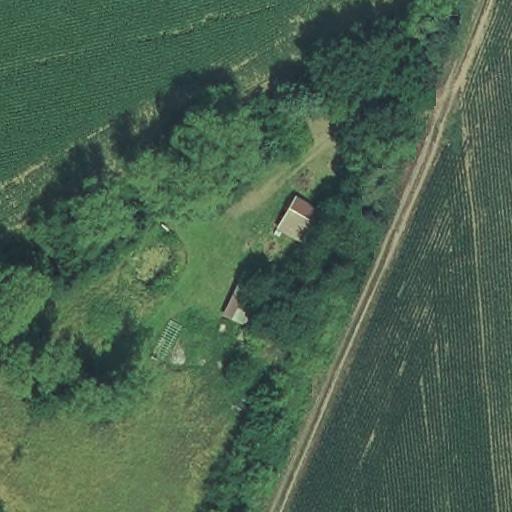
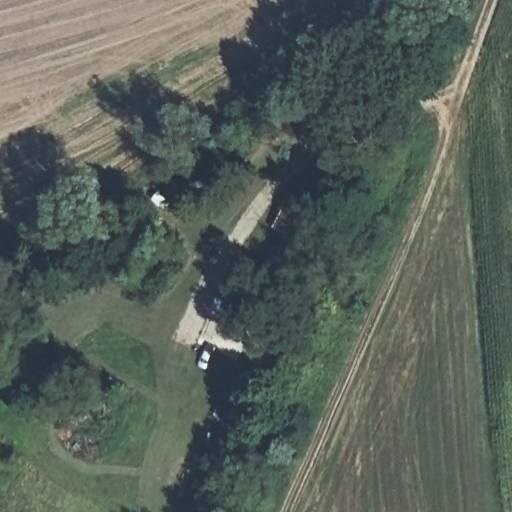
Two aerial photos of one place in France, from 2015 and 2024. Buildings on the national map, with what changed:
unchanged [(329,217),(308,250),(276,231),(297,199),(329,217)]

